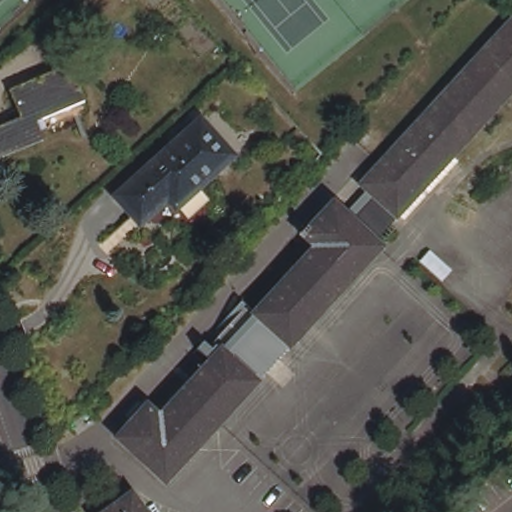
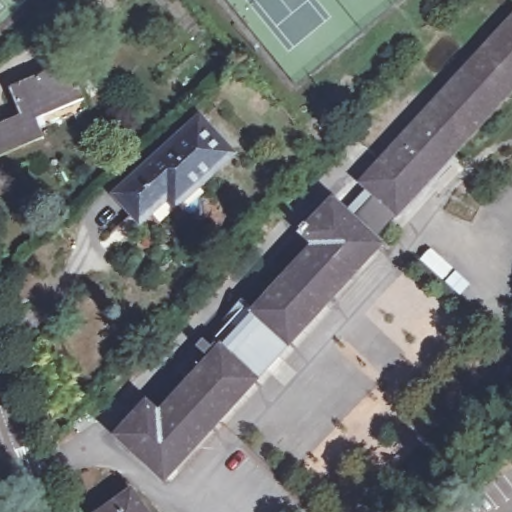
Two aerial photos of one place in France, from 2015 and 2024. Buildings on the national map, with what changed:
unchanged [(315,241),(300,227),(304,223),(307,225),(332,198),(345,209),(369,184),(362,177),(512,15),(512,85),(373,233),(381,240),(331,295),(295,262),(315,241)]
unchanged [(28,115),(15,89),(74,64),(89,101),(40,122),(48,140),(0,160),(0,127),(28,115)]
unchanged [(132,216),(130,213),(115,196),(164,152),(162,150),(165,146),(167,148),(200,120),(233,156),(162,218),(155,210),(140,223),(132,216)]
unchanged [(295,262),(331,295),(290,339),(262,314),(262,313),(255,306),(295,262)]
unchanged [(212,336),(247,298),(255,306),(262,313),(262,314),(229,350),(221,343),(212,336)]
unchanged [(221,343),(229,350),(257,376),(215,421),(180,389),(221,343)]
unchanged [(165,476),(117,431),(146,399),(160,411),(180,389),(215,421),(165,476)]
unchanged [(150,512),(108,512),(135,492),(150,512)]

